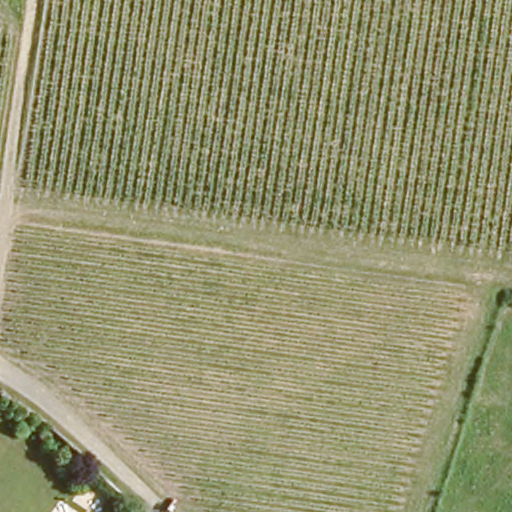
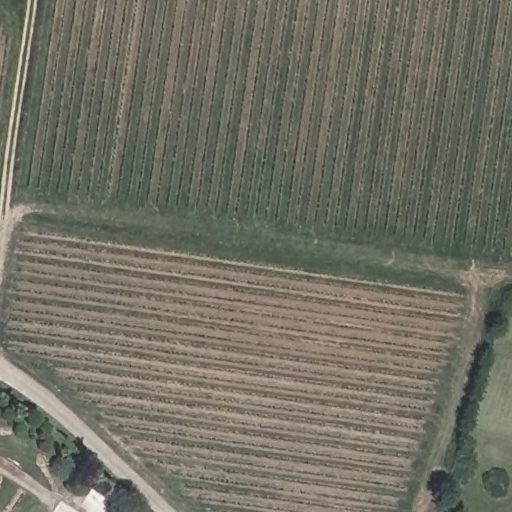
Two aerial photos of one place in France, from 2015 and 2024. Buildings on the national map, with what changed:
[]

